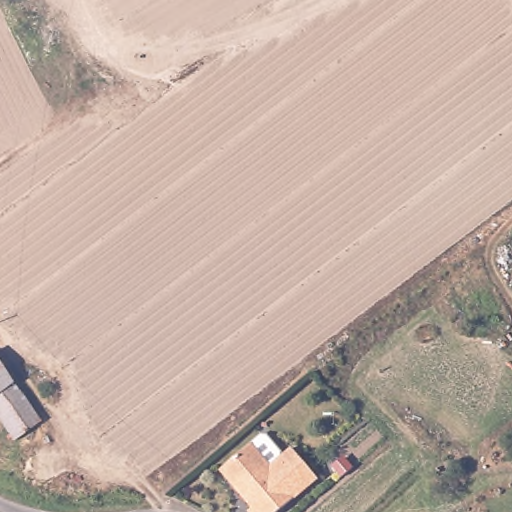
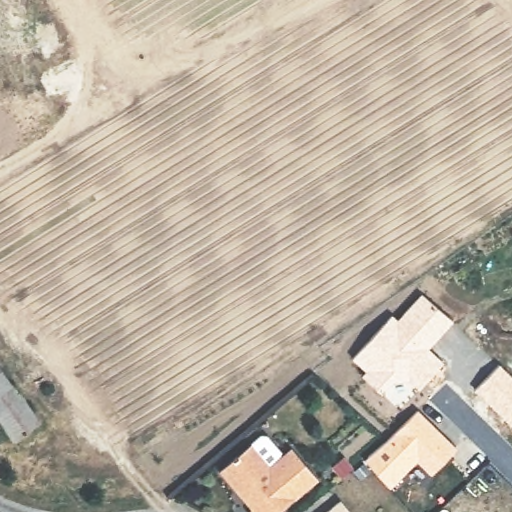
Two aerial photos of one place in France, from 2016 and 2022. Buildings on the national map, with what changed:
new [(363,375),(366,371),(351,358),(391,314),(397,319),(420,293),(452,321),(427,347),(444,364),(425,382),(416,372),(409,379),(391,380),(380,391),(363,375)]
unchanged [(45,421),(19,442),(0,416),(0,359),(45,421)]
new [(418,409),(456,448),(430,474),(417,461),(389,488),(362,460),(418,409)]
unchanged [(269,465),(290,448),(318,478),(278,512),(249,512),(250,510),(220,474),(251,446),(269,465)]
new [(351,512),(324,512),(341,498),(351,512)]

